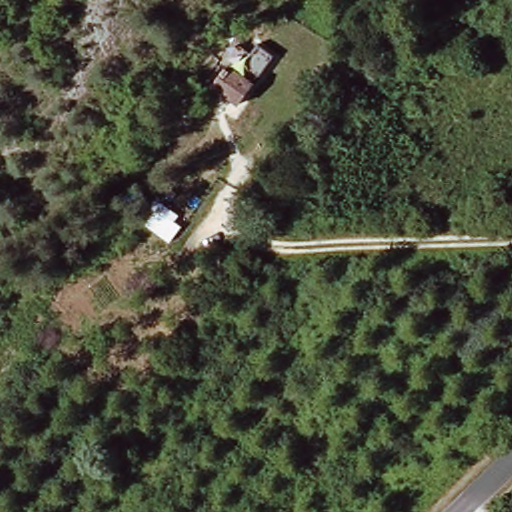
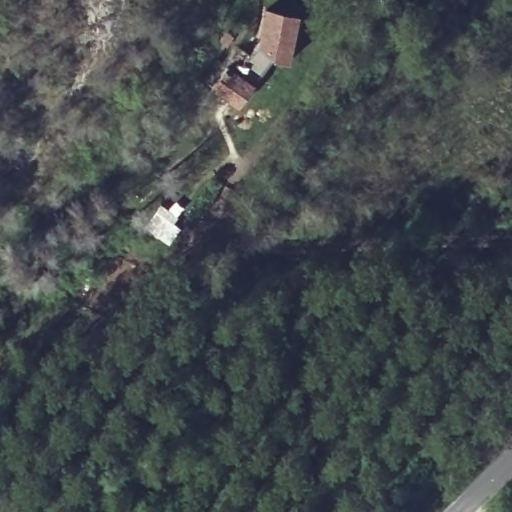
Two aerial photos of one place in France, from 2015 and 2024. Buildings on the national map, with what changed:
new [(253,44),(262,5),(300,13),(290,63),(273,59),(260,74),(244,61),(253,44)]
unchanged [(216,99),(205,93),(220,68),(249,85),(235,109),(216,99)]

